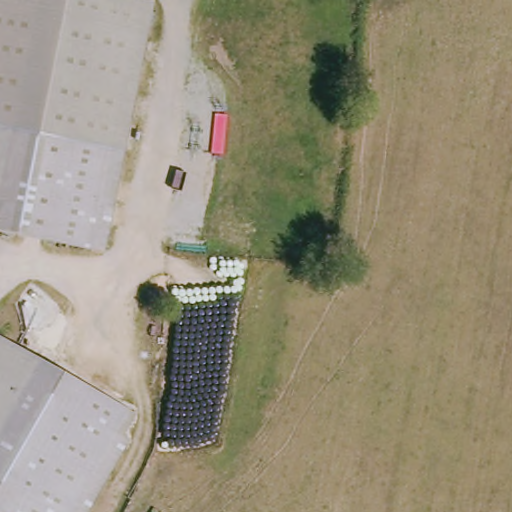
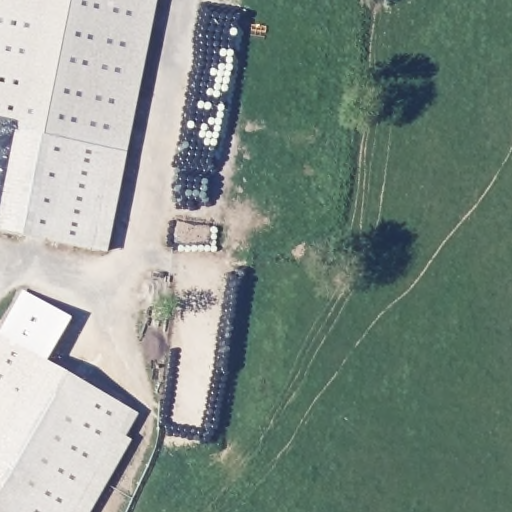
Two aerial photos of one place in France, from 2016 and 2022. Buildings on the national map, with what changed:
unchanged [(0,228),(0,0),(156,0),(124,197),(116,247),(101,244),(0,228)]
new [(16,285),(62,311),(37,355),(0,334),(0,313),(16,285)]
unchanged [(0,505),(0,336),(1,334),(132,407),(121,430),(133,437),(93,512),(12,512),(0,505)]

